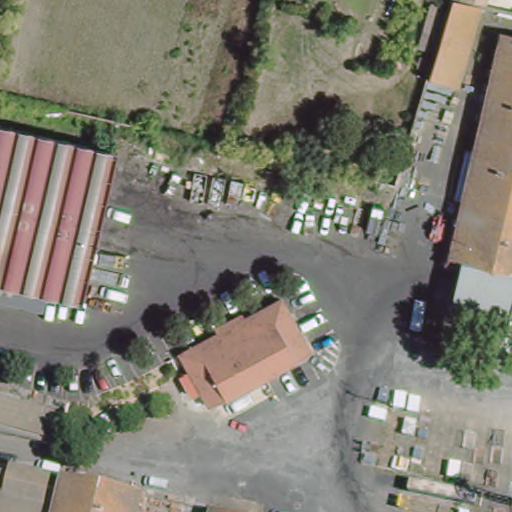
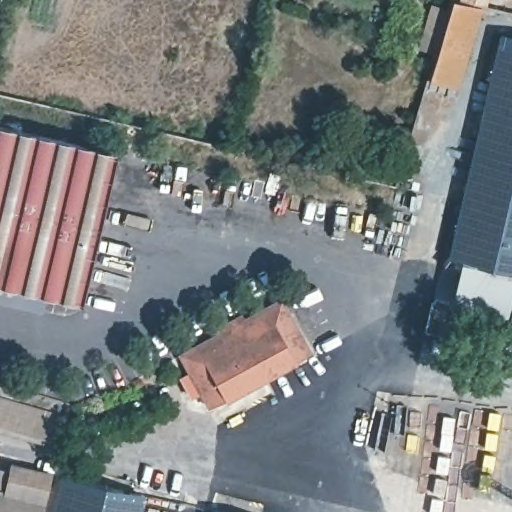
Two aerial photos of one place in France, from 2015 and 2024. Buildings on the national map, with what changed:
unchanged [(465,87),(431,78),(437,57),(439,52),(450,13),(454,0),(489,0),(465,87)]
unchanged [(456,247),(507,37),(512,38),(512,260),(467,250),(456,247)]
unchanged [(108,150),(72,292),(0,275),(0,125),(108,150)]
unchanged [(467,250),(512,260),(512,306),(456,292),(467,250)]
unchanged [(277,303),(307,356),(206,414),(176,362),(210,342),(207,336),(236,319),(240,325),(277,303)]
unchanged [(0,435),(0,394),(69,416),(62,450),(0,435)]
unchanged [(21,512),(0,507),(0,459),(50,472),(40,512),(21,512)]
unchanged [(52,512),(60,476),(135,493),(131,512),(52,512)]
unchanged [(219,512),(212,512),(212,511),(219,512)]

